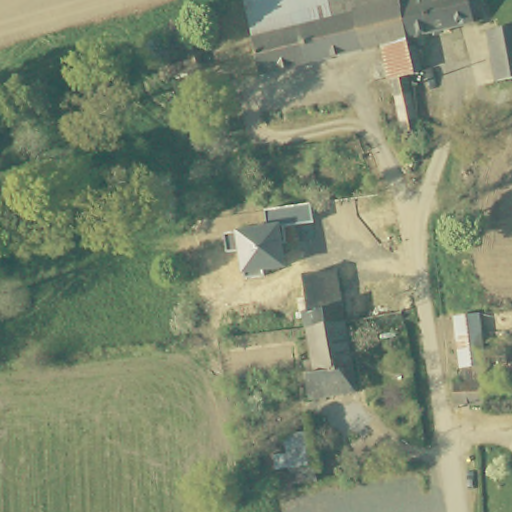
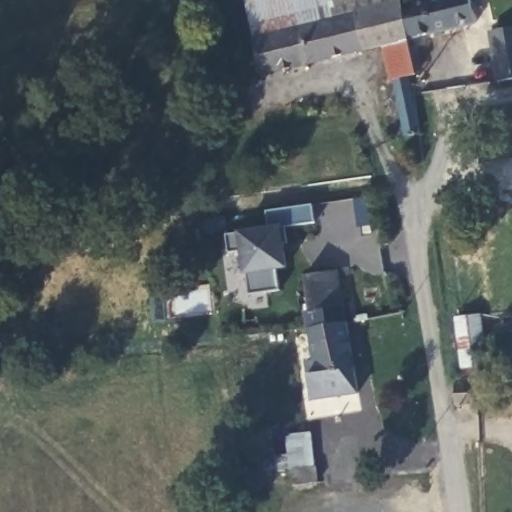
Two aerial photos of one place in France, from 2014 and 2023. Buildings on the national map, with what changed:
unchanged [(255,0),(352,0),(356,16),(254,40),(245,2),(255,0)]
unchanged [(352,0),(399,0),(400,0),(407,38),(414,73),(408,74),(419,131),(404,134),(392,77),(390,78),(383,44),(262,75),(254,40),(356,16),(352,0)]
unchanged [(469,0),(473,23),(407,38),(400,0),(402,0),(469,0)]
unchanged [(512,27),(512,79),(497,81),(489,30),(512,27)]
unchanged [(237,94),(247,128),(226,132),(217,98),(237,94)]
unchanged [(263,270),(265,279),(246,281),(242,252),(228,254),(225,233),(269,225),(267,210),(311,203),(315,226),(281,230),(287,266),(263,270)]
unchanged [(307,312),(311,312),(305,276),(337,270),(345,320),(309,325),(307,312)]
unchanged [(307,363),(315,362),(309,325),(345,320),(357,391),(312,398),(307,363)]
unchanged [(463,322),(486,320),(488,370),(467,372),(463,322)]
unchanged [(460,386),(467,385),(467,377),(488,375),(490,375),(491,406),(463,408),(461,409),(460,386)]
new [(276,474),(272,456),(287,454),(284,435),(311,433),(316,470),(317,484),(292,487),(291,473),(276,474)]
demolished [(291,473),(316,470),(317,484),(292,487),(291,473)]

